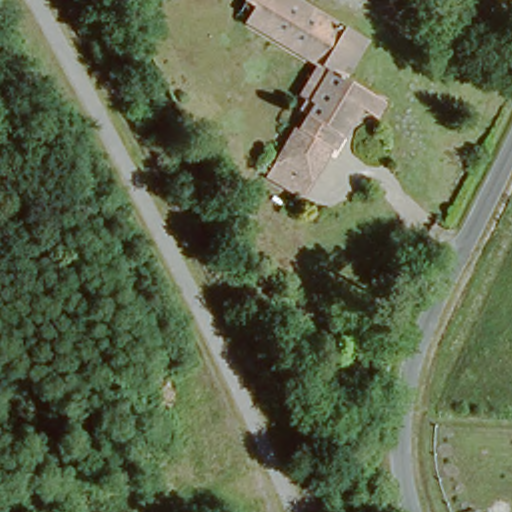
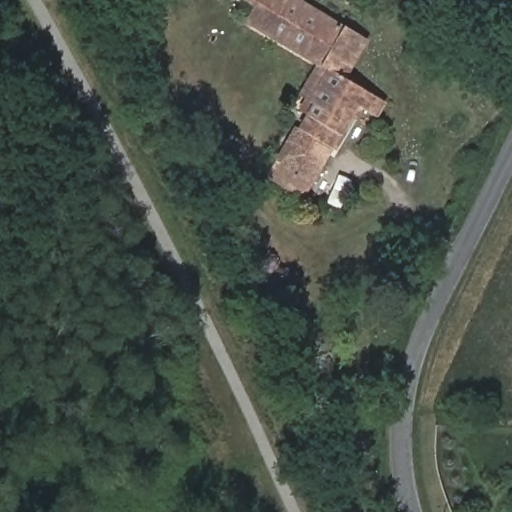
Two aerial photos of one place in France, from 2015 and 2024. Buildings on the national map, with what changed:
unchanged [(325,66),(250,22),(259,7),(248,1),(249,0),(302,0),(368,39),(346,77),(380,97),(387,101),(378,116),(371,112),(362,107),(307,200),(271,178),(280,164),(284,166),(313,117),(306,113),(315,99),(307,95),(325,66)]

